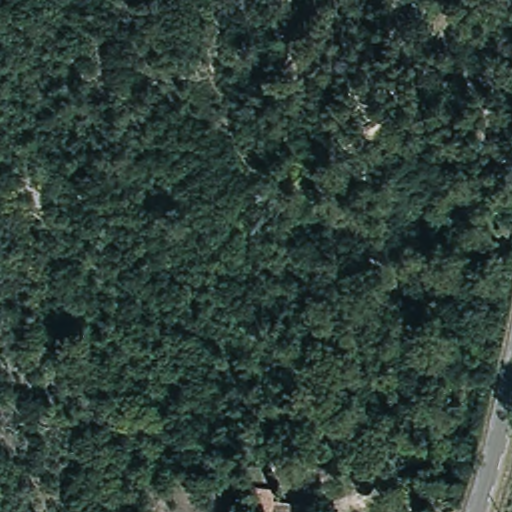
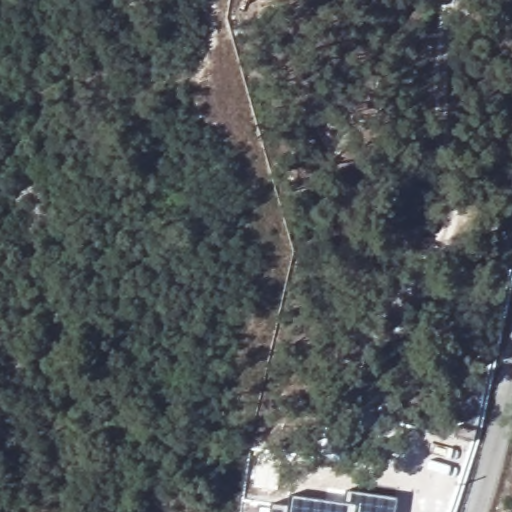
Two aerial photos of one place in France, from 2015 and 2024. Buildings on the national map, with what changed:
new [(270,512),(270,504),(288,506),(290,497),(343,503),(345,492),(398,500),(397,512),(270,512)]
demolished [(295,499),(293,510),(310,512),(273,512),(275,496),(295,499)]

